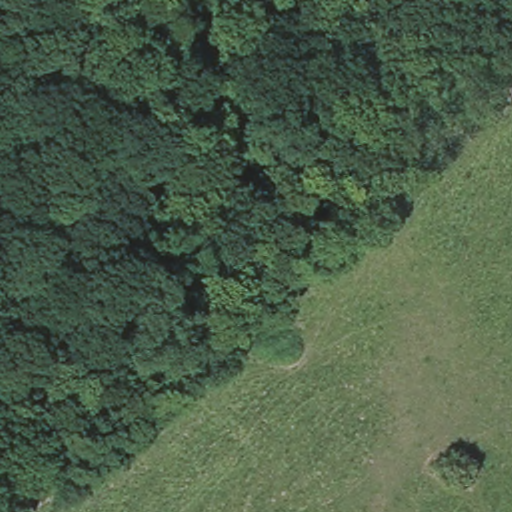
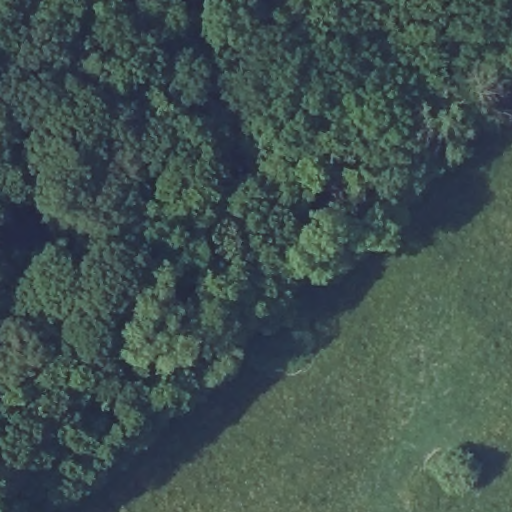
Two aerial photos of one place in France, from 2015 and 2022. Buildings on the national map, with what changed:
unchanged [(272,286),(250,313),(241,306),(237,303),(260,276),(267,282),(272,286)]

